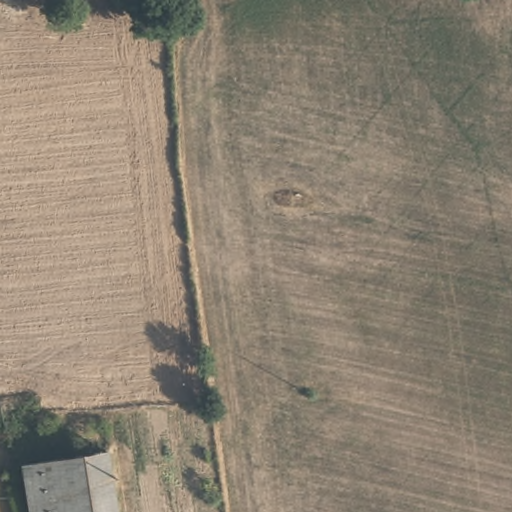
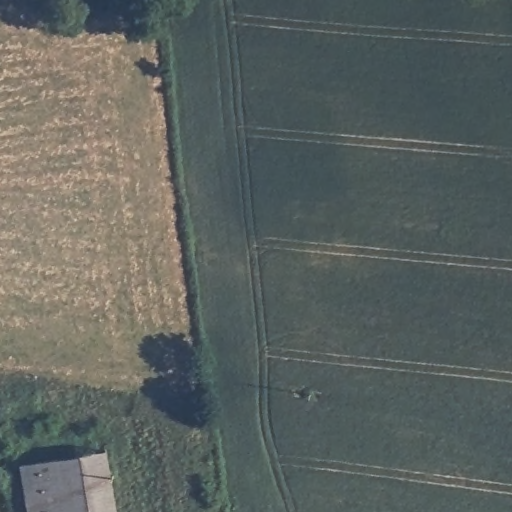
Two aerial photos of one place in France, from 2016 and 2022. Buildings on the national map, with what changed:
unchanged [(56,455),(106,447),(118,512),(65,512),(56,455)]
unchanged [(21,461),(56,455),(65,512),(29,512),(21,461)]

